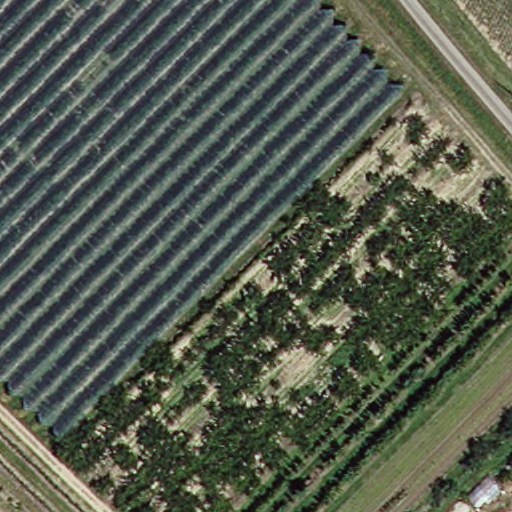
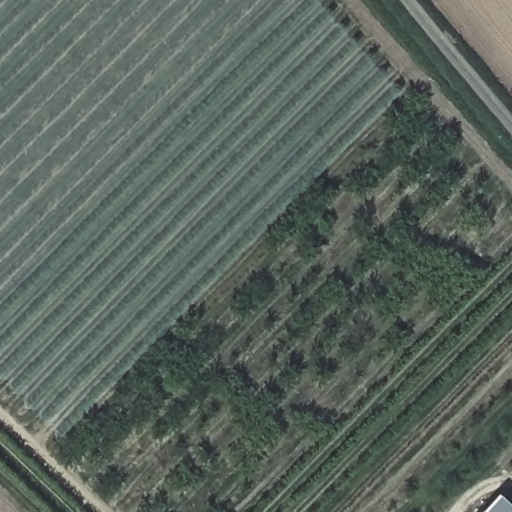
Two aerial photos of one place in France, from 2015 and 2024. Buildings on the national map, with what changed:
new [(512,512),(482,512),(500,493),(512,504),(512,512)]

